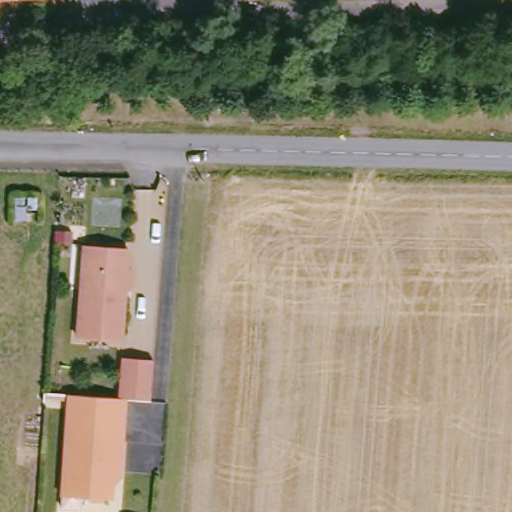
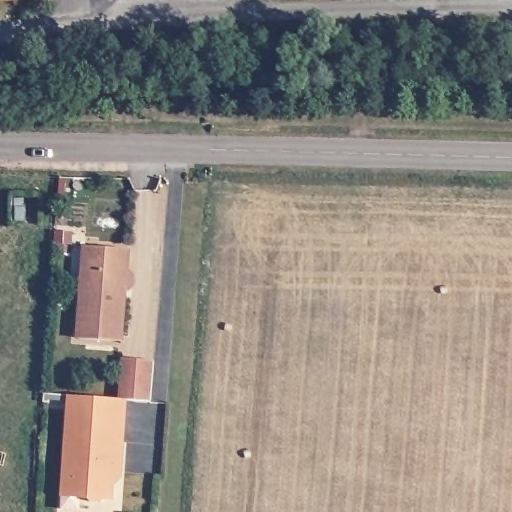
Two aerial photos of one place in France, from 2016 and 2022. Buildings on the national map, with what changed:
unchanged [(120,339),(83,337),(85,316),(83,315),(81,313),(80,312),(79,310),(79,308),(78,307),(78,304),(79,302),(79,301),(81,298),(82,296),(84,295),(86,294),(90,243),(132,246),(129,295),(126,339),(120,339)]
unchanged [(148,368),(145,408),(123,407),(115,407),(118,367),(148,368)]
unchanged [(120,452),(113,451),(109,507),(96,507),(94,512),(84,512),(78,506),(71,506),(72,495),(60,494),(65,405),(115,407),(123,407),(120,452)]

